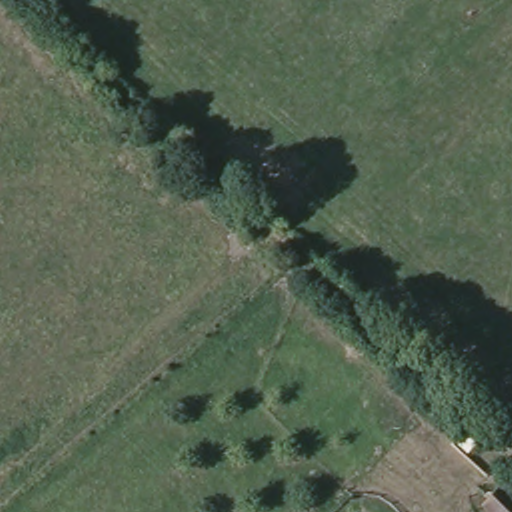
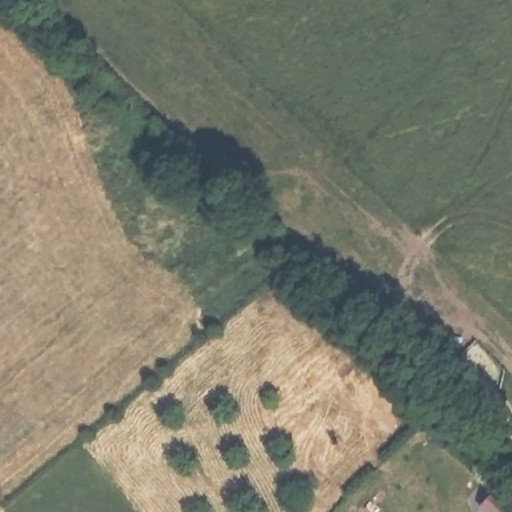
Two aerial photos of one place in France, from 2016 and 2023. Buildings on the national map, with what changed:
unchanged [(474,442),(465,450),(458,441),(467,436),(474,442)]
unchanged [(512,507),(512,512),(487,512),(481,507),(495,492),(512,507)]

